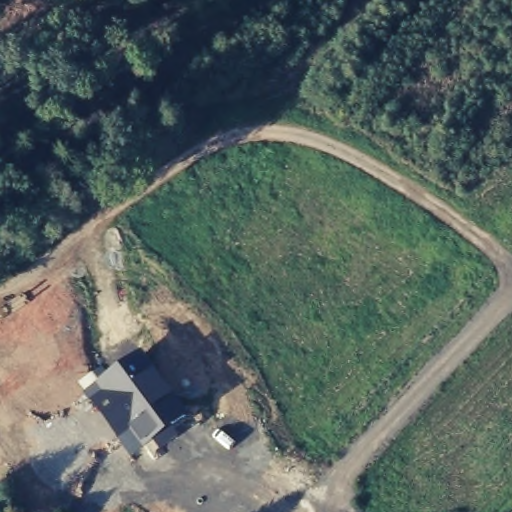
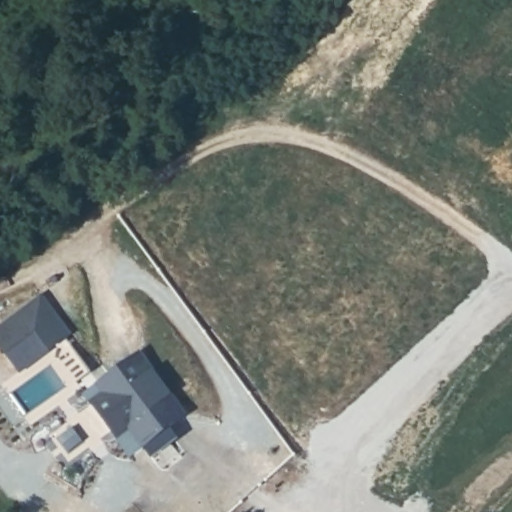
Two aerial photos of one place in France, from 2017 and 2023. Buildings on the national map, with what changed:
new [(0,345),(0,326),(42,294),(71,334),(20,373),(0,345)]
unchanged [(145,445),(98,383),(138,356),(182,416),(145,445)]

